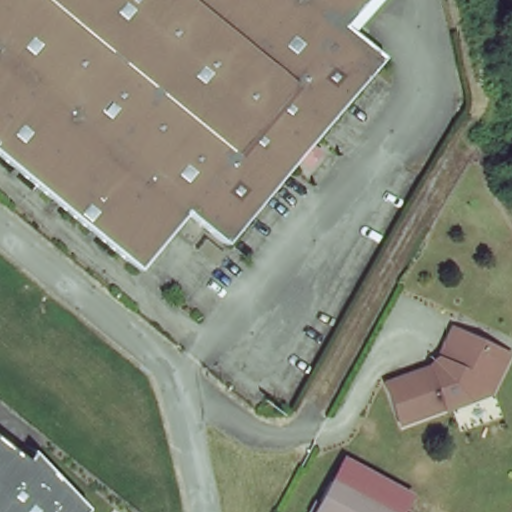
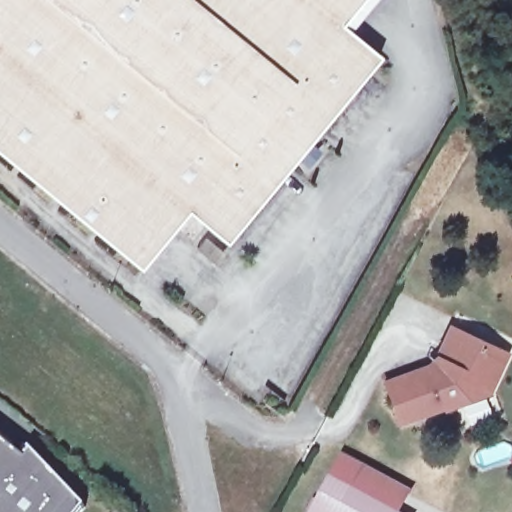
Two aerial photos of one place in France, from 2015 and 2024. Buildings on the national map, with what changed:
unchanged [(300,155),(227,242),(190,212),(141,271),(0,156),(0,0),(365,0),(350,18),(343,27),(362,42),(381,58),(312,141),(322,149),(310,164),(300,155)]
unchanged [(209,239),(230,255),(221,267),(199,250),(209,239)]
unchanged [(470,330),(512,351),(512,371),(501,393),(479,383),(469,407),(416,425),(403,383),(450,365),(470,330)]
unchanged [(81,512),(0,512),(0,439),(24,457),(31,448),(87,505),(81,512)]
unchanged [(336,454),(400,491),(390,512),(382,512),(323,479),(336,454)]
unchanged [(323,479),(382,512),(305,512),(323,479)]

